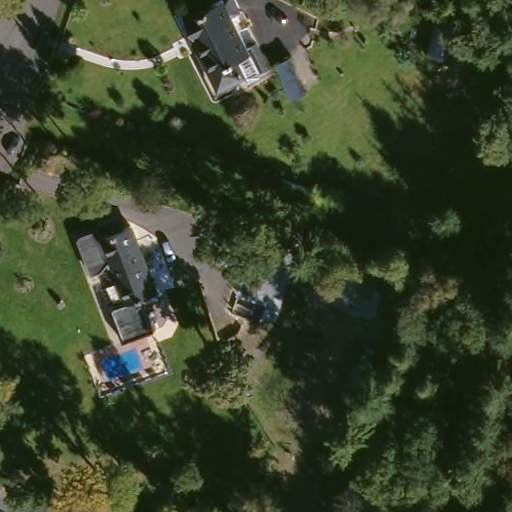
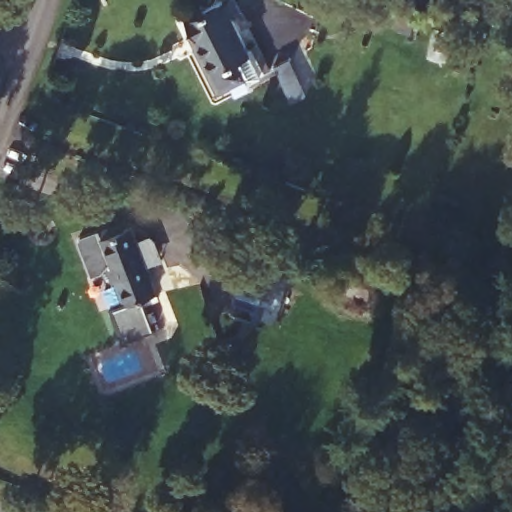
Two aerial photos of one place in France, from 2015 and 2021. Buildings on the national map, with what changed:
unchanged [(224,100),(176,20),(215,1),(218,0),(231,0),(241,15),(228,21),(264,81),(224,100)]
unchanged [(118,313),(111,288),(99,291),(93,271),(86,272),(74,230),(97,226),(99,235),(131,227),(156,307),(118,313)]
unchanged [(254,308),(271,264),(294,272),(276,317),(254,308)]

